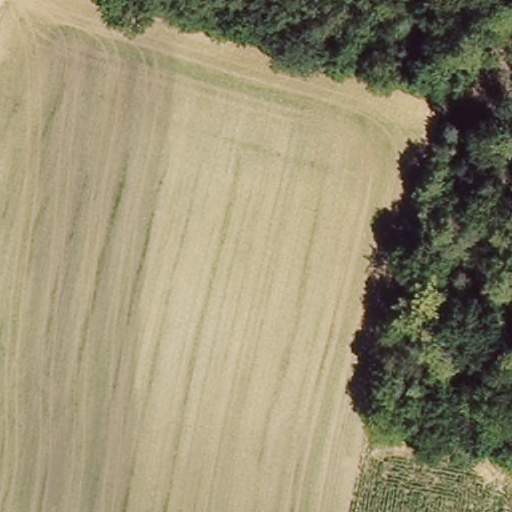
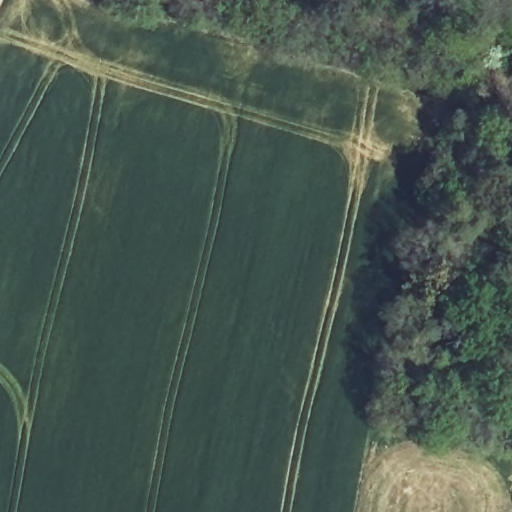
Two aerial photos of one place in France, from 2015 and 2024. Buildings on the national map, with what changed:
unchanged [(277,112),(263,108),(268,94),(282,99),(277,112)]

